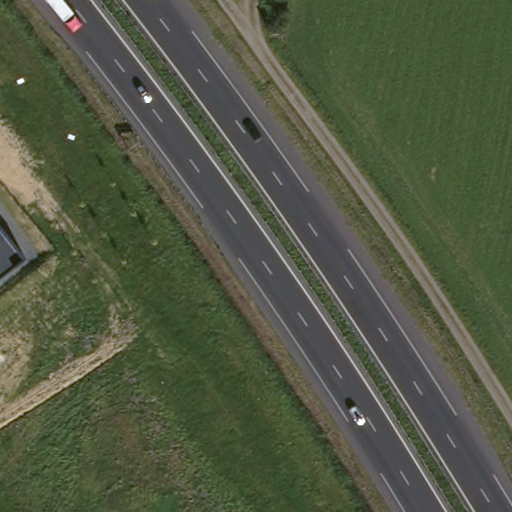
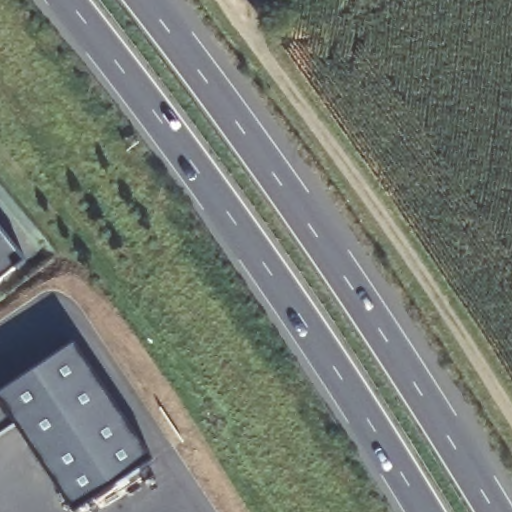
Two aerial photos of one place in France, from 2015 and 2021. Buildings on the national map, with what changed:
unchanged [(0,279),(0,230),(24,260),(0,279)]
new [(152,461),(76,512),(73,512),(17,426),(0,437),(0,396),(76,345),(152,461)]

